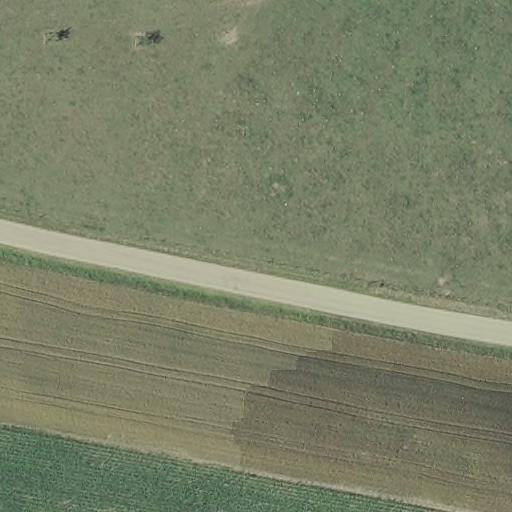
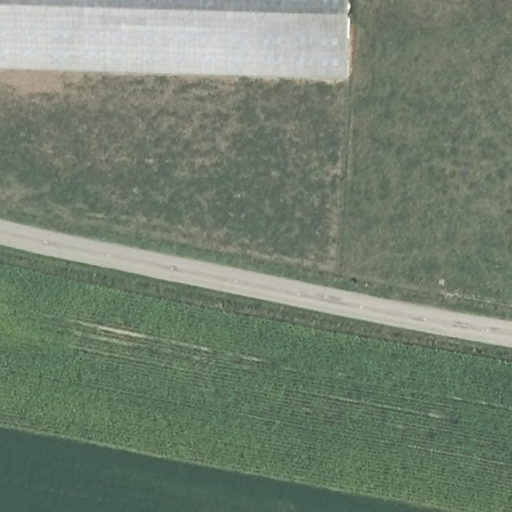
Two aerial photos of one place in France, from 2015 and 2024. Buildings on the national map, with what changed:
new [(0,69),(0,0),(351,0),(348,55),(347,79),(0,69)]

